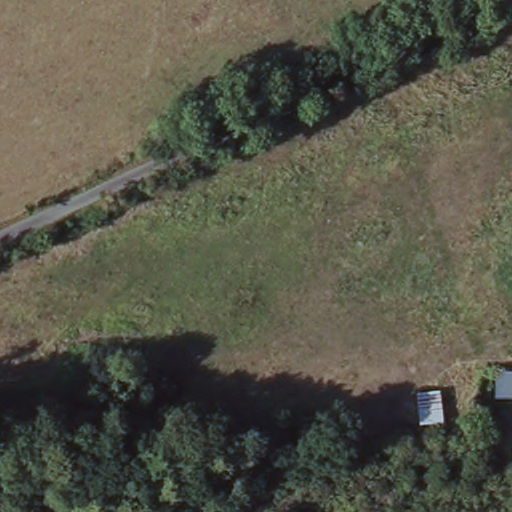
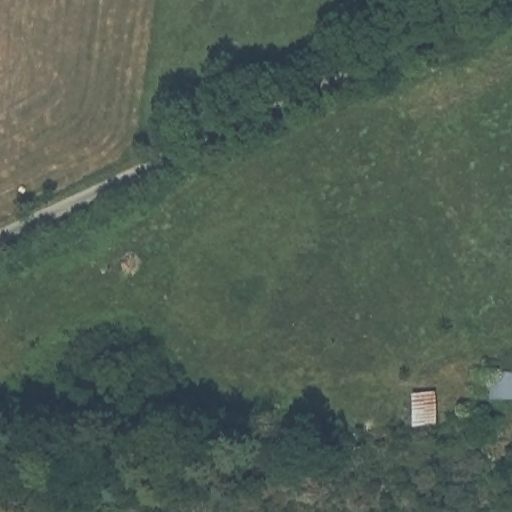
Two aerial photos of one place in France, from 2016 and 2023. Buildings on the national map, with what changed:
unchanged [(493,372),(512,373),(512,403),(493,401),(493,372)]
unchanged [(414,428),(412,394),(439,393),(443,430),(414,428)]

